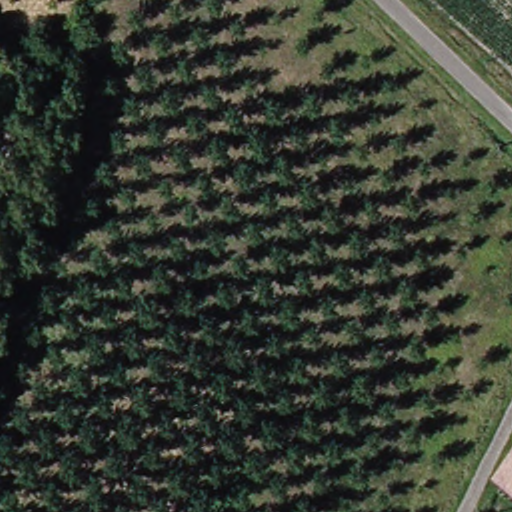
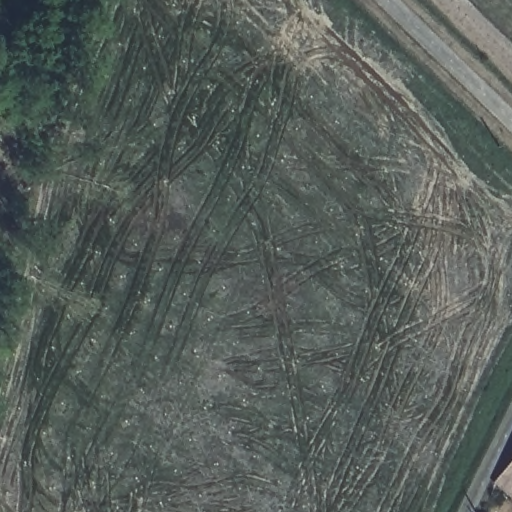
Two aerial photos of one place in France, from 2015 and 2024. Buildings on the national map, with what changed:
unchanged [(512,462),(512,503),(493,486),(512,462)]

